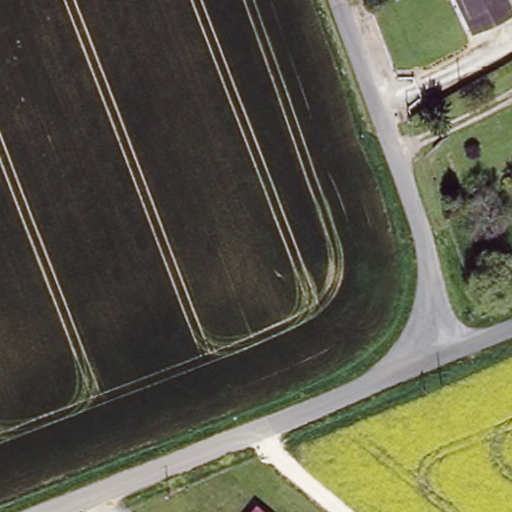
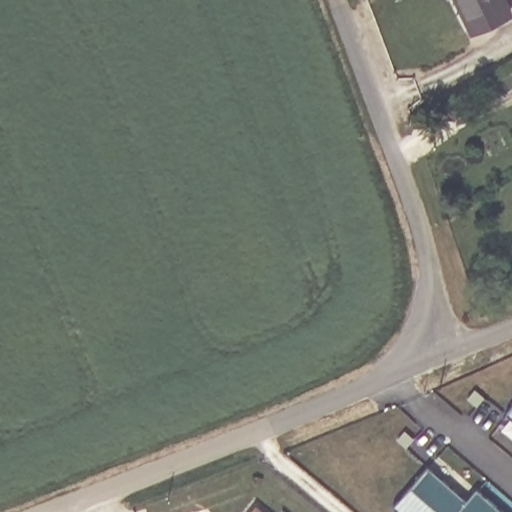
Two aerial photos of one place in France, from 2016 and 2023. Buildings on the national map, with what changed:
unchanged [(470,26),(458,0),(502,0),(506,9),(470,26)]
new [(506,413),(512,406),(512,417),(506,413)]
new [(393,505),(427,464),(466,498),(476,486),(506,512),(401,512),(393,505)]
unchanged [(255,507),(260,512),(251,512),(255,507)]

